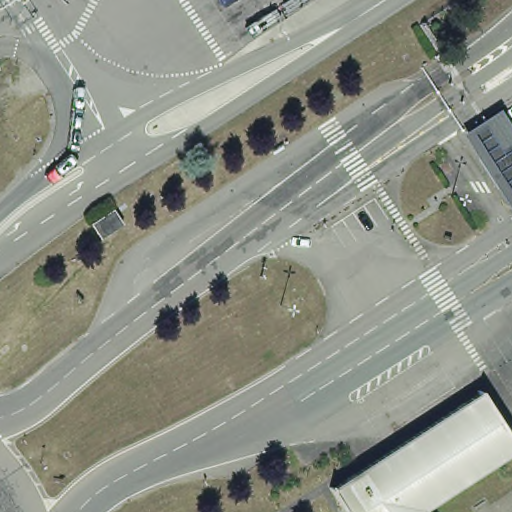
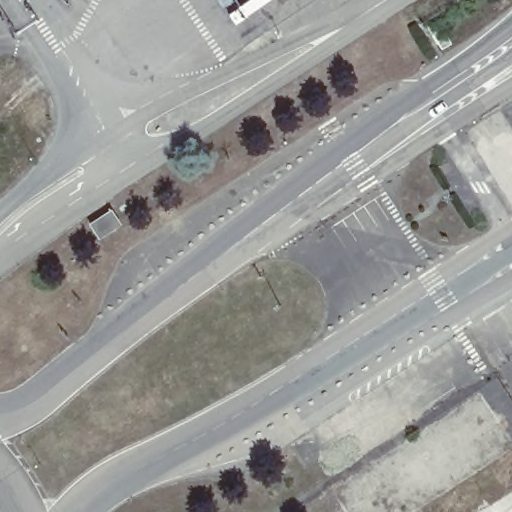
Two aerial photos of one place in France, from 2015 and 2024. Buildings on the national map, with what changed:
demolished [(512,124),(512,203),(472,129),(502,109),(512,124)]
new [(112,208),(121,224),(100,237),(90,222),(112,208)]
demolished [(332,490),(490,393),(512,429),(512,442),(416,505),(420,512),(346,512),(332,490)]

